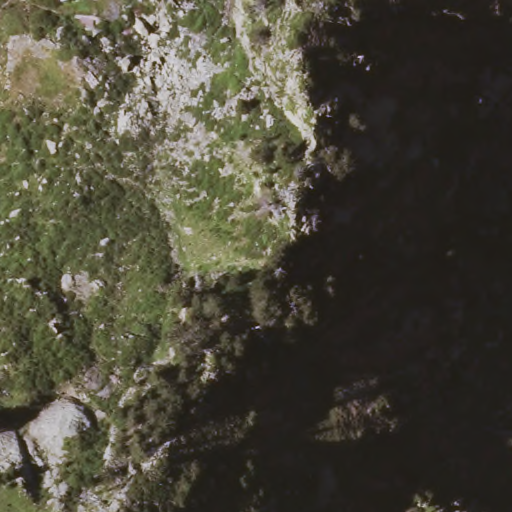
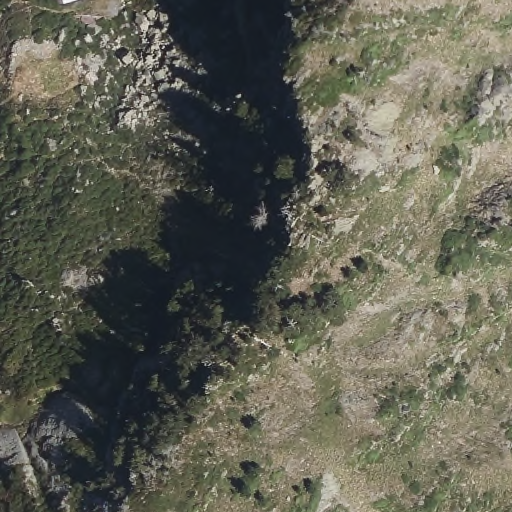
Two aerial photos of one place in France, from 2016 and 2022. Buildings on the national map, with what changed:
unchanged [(62,0),(68,0),(62,2),(62,0)]

